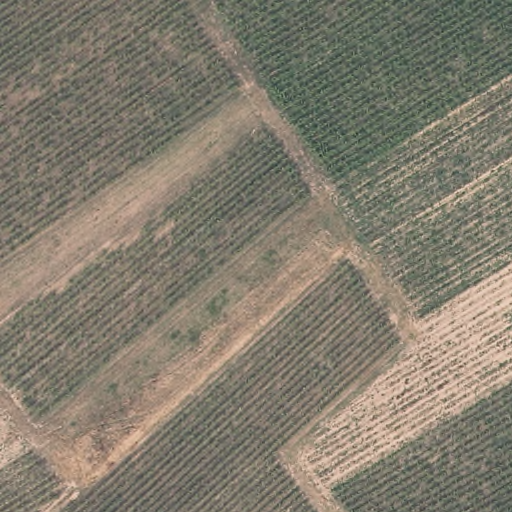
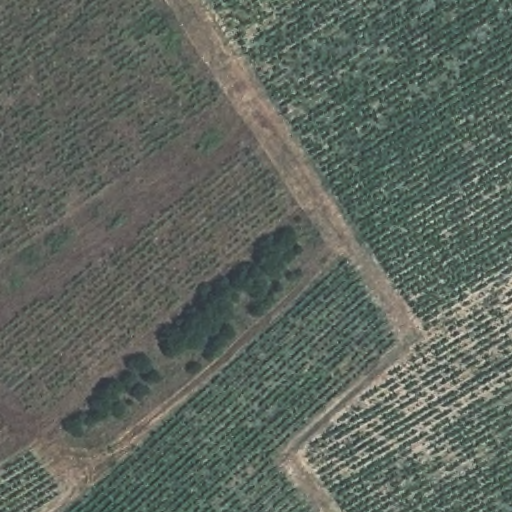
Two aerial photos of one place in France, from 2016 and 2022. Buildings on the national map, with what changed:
[]

